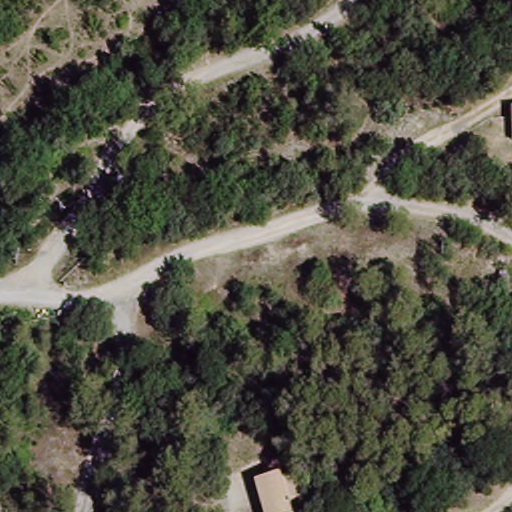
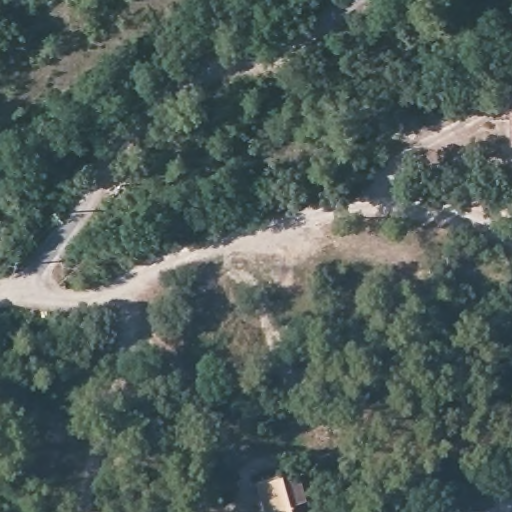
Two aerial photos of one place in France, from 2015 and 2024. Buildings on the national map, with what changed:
unchanged [(253,482),(280,478),(281,484),(300,480),(304,503),(290,505),(291,512),(259,512),(253,482)]

